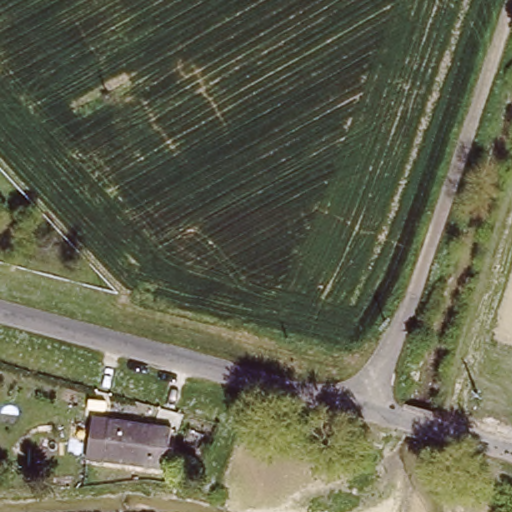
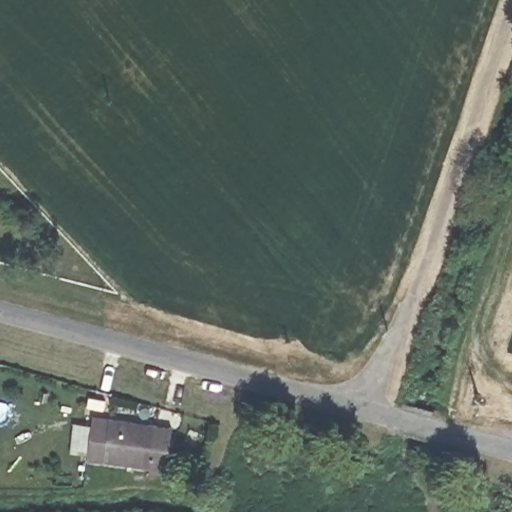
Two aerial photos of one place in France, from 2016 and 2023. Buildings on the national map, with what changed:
unchanged [(88,464),(90,421),(171,424),(170,438),(190,439),(188,469),(170,468),(151,467),(88,464)]

